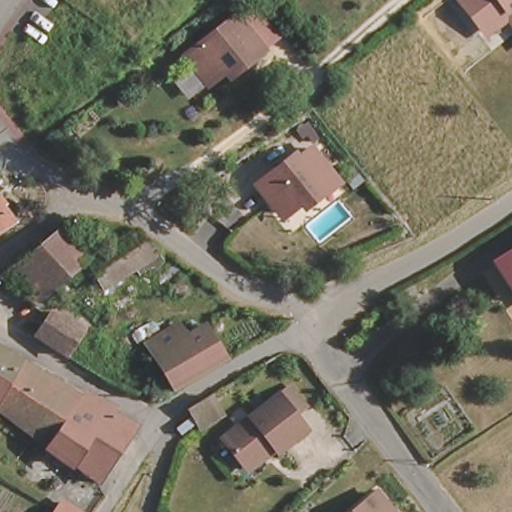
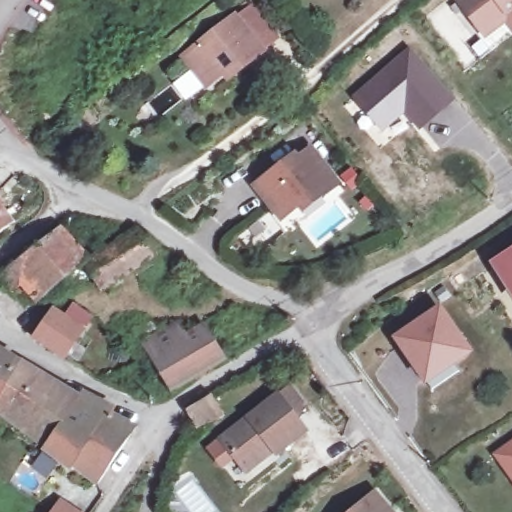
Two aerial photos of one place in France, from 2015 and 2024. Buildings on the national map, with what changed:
unchanged [(485,41),(453,0),(512,0),(512,33),(504,24),(485,41)]
unchanged [(237,17),(254,4),(280,39),(265,55),(242,71),(235,64),(220,75),(205,87),(182,57),(237,17)]
new [(352,96),(410,46),(455,100),(418,131),(405,115),(382,134),(352,96)]
unchanged [(280,225),(252,185),(310,145),(337,184),(280,225)]
unchanged [(13,225),(0,234),(0,203),(13,225)]
unchanged [(42,308),(20,275),(82,230),(97,252),(105,263),(85,277),(47,305),(58,313),(37,340),(27,333),(42,308)]
unchanged [(105,263),(97,252),(130,230),(152,260),(100,299),(85,277),(105,263)]
unchanged [(512,263),(512,283),(503,268),(512,263)]
new [(456,365),(462,372),(433,390),(428,384),(425,386),(392,337),(441,304),(475,352),(456,365)]
unchanged [(58,313),(85,327),(66,356),(37,340),(58,313)]
unchanged [(152,352),(207,321),(230,363),(170,389),(152,352)]
unchanged [(0,389),(0,352),(17,362),(0,389)]
unchanged [(0,417),(0,389),(17,362),(80,402),(50,448),(0,417)]
unchanged [(220,437),(293,385),(320,420),(248,473),(220,437)]
unchanged [(80,402),(135,435),(105,482),(50,448),(80,402)]
new [(215,421),(194,434),(183,417),(205,402),(215,421)]
demolished [(209,438),(187,451),(177,435),(198,420),(209,438)]
new [(512,440),(512,481),(492,453),(512,440)]
unchanged [(387,512),(349,512),(372,493),(387,512)]
unchanged [(75,512),(63,512),(68,506),(75,512)]

